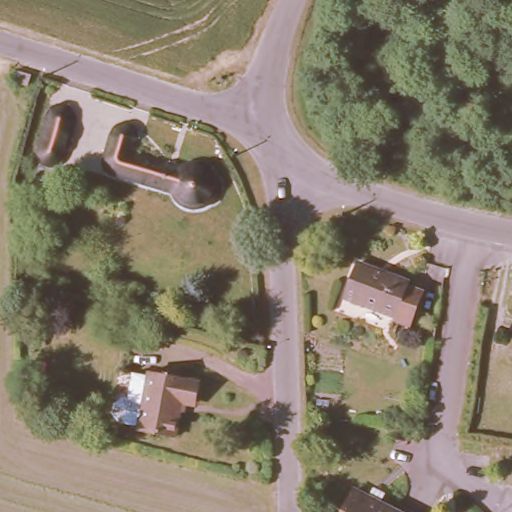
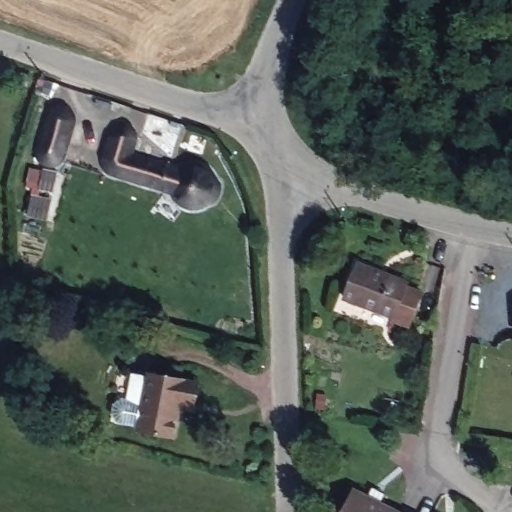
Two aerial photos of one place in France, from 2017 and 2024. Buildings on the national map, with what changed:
unchanged [(28,86),(10,81),(13,69),(32,74),(28,86)]
unchanged [(77,115),(58,171),(30,160),(47,106),(77,115)]
unchanged [(412,132),(415,122),(426,120),(433,127),(430,138),(420,140),(412,132)]
unchanged [(109,125),(137,136),(132,154),(174,167),(180,162),(192,158),(204,165),(212,176),(212,194),(208,201),(192,207),(181,206),(168,194),(167,190),(98,170),(109,125)]
unchanged [(366,271),(416,291),(402,325),(352,305),(366,271)]
unchanged [(185,405),(177,403),(172,437),(132,428),(141,363),(189,377),(185,405)]
unchanged [(358,488),(371,495),(377,485),(389,491),(384,501),(405,512),(346,512),(358,488)]

